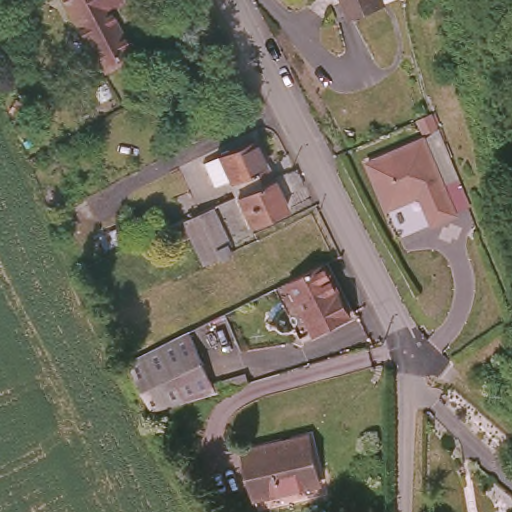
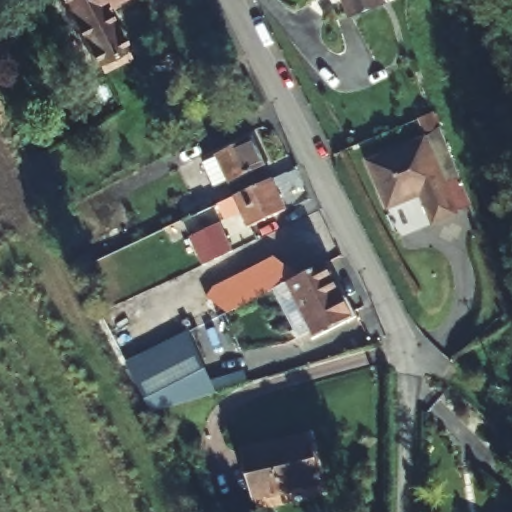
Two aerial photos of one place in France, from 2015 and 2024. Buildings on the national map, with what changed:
unchanged [(89,53),(63,0),(101,0),(99,1),(117,39),(89,53)]
unchanged [(351,8),(348,0),(375,0),(351,8)]
unchanged [(419,199),(387,216),(362,160),(427,133),(463,214),(432,229),(419,199)]
unchanged [(272,178),(235,195),(222,166),(217,169),(212,157),(257,139),(272,178)]
unchanged [(285,208),(249,226),(235,195),(272,178),(285,208)]
unchanged [(234,245),(202,260),(182,216),(186,214),(207,204),(213,201),(234,245)]
unchanged [(163,229),(134,243),(130,233),(159,220),(163,229)]
new [(227,312),(207,296),(215,286),(275,256),(300,276),(227,312)]
unchanged [(353,317),(320,332),(293,279),(326,263),(353,317)]
unchanged [(215,393),(157,411),(150,414),(121,359),(127,356),(184,328),(215,393)]
unchanged [(314,475),(250,492),(240,450),(262,446),(296,435),(305,437),(314,475)]

